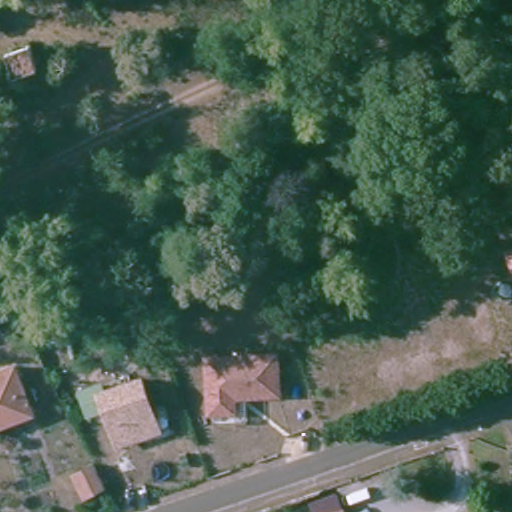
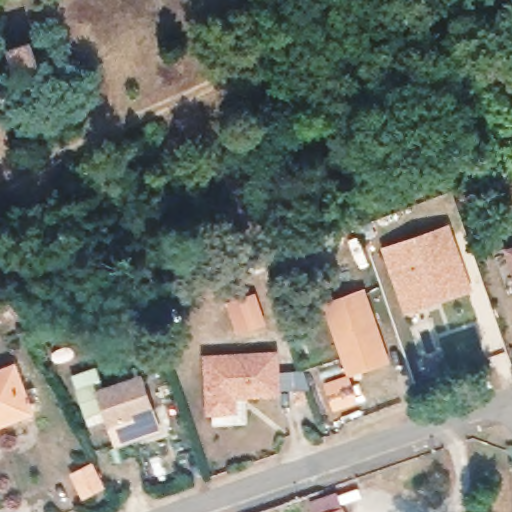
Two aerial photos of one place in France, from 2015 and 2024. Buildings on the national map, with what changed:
unchanged [(34,62),(27,43),(45,37),(52,55),(34,62)]
new [(405,310),(383,248),(450,225),(473,287),(405,310)]
unchanged [(512,246),(512,273),(504,249),(512,246)]
new [(350,376),(324,305),(366,288),(392,361),(350,376)]
unchanged [(279,393),(234,396),(234,411),(210,412),(208,373),(207,358),(222,357),(277,354),(279,393)]
demolished [(56,357),(73,403),(0,431),(0,378),(56,357)]
new [(0,427),(0,371),(18,364),(36,414),(0,427)]
unchanged [(111,402),(104,405),(93,408),(85,387),(105,380),(108,386),(145,373),(163,425),(124,438),(111,402)]
unchanged [(89,495),(78,472),(98,462),(110,484),(89,495)]

